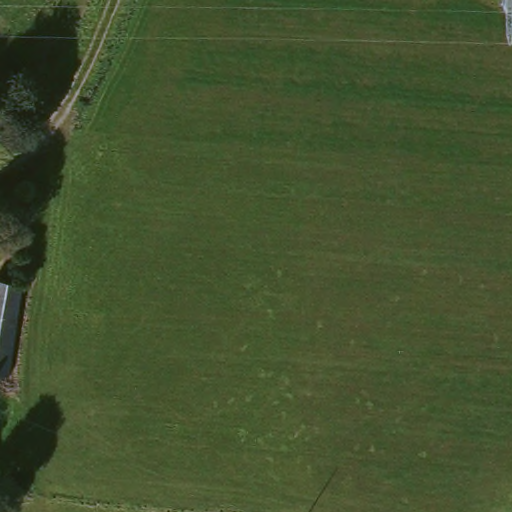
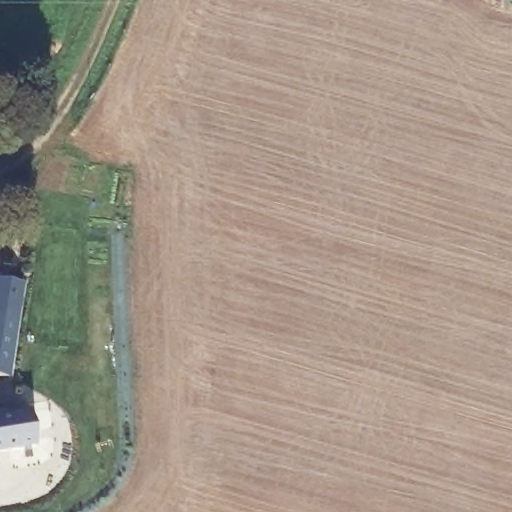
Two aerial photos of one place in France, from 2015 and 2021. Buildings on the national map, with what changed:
unchanged [(7,381),(0,380),(0,285),(19,287),(9,381),(7,381)]
new [(31,411),(36,447),(0,453),(0,416),(31,411)]

